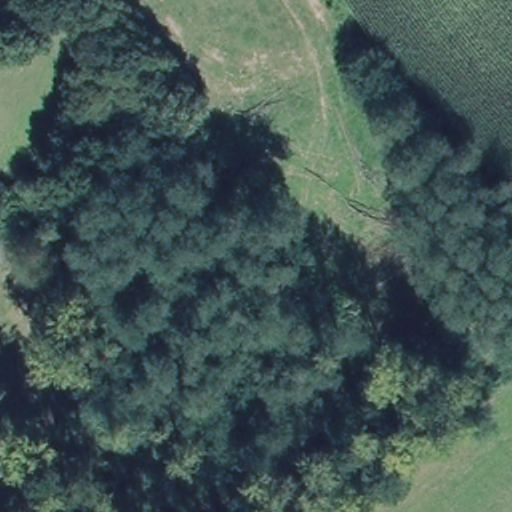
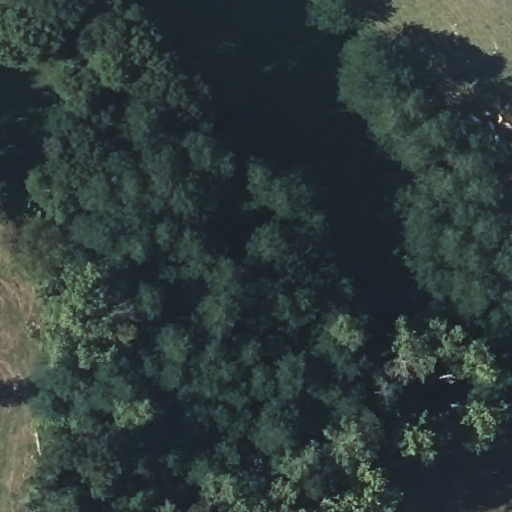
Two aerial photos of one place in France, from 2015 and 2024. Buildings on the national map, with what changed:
[]

